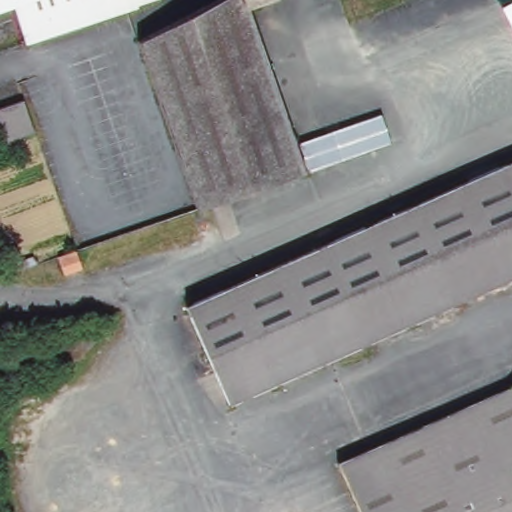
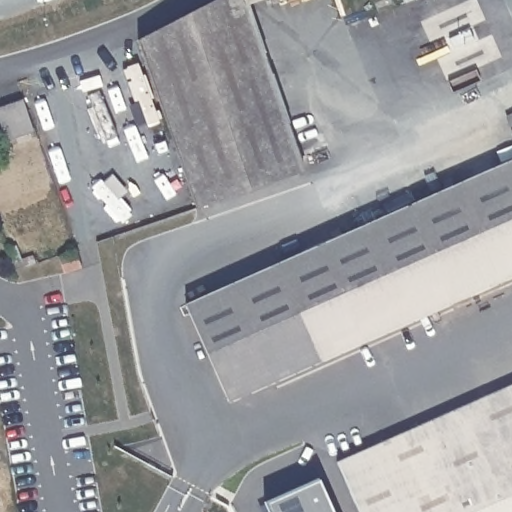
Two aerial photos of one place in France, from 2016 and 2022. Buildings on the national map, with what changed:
demolished [(37,39),(22,44),(10,6),(0,10),(0,0),(155,0),(150,2),(37,39)]
unchanged [(203,205),(137,39),(152,30),(163,24),(179,16),(188,12),(214,0),(265,0),(245,9),(307,163),(203,205)]
new [(32,105),(44,136),(16,147),(5,115),(32,105)]
unchanged [(382,112),(392,141),(311,169),(302,142),(382,112)]
unchanged [(240,407),(196,309),(512,159),(512,277),(240,407)]
unchanged [(512,385),(512,512),(358,512),(336,461),(512,385)]
new [(264,500),(317,478),(332,512),(269,512),(264,500)]

